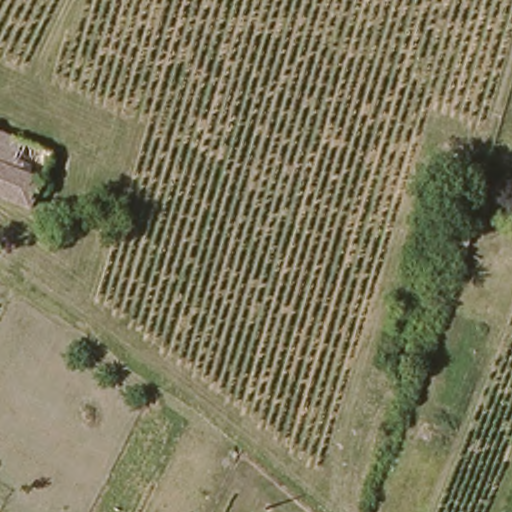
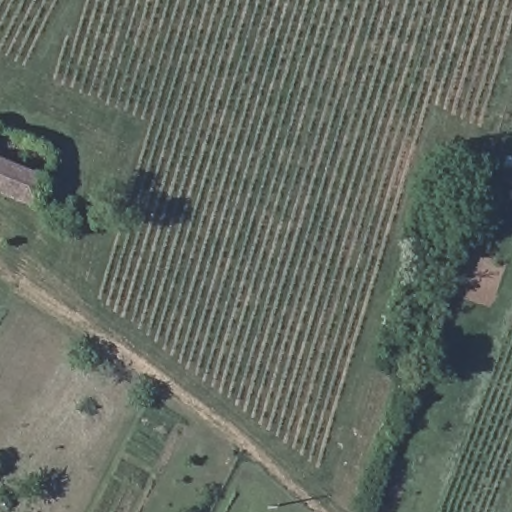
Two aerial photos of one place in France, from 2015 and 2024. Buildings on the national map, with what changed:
unchanged [(45,174),(55,178),(50,189),(40,185),(31,205),(0,192),(0,127),(55,151),(45,174)]

